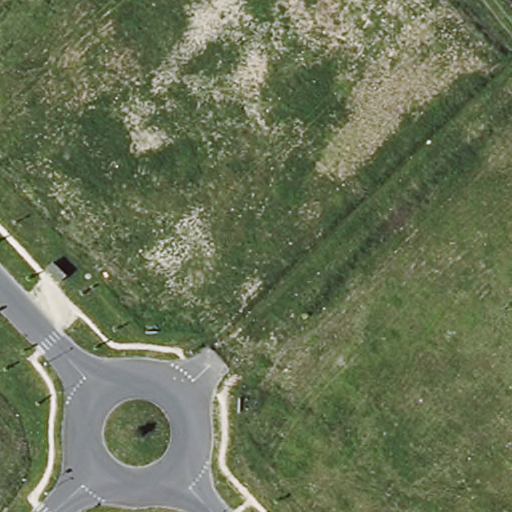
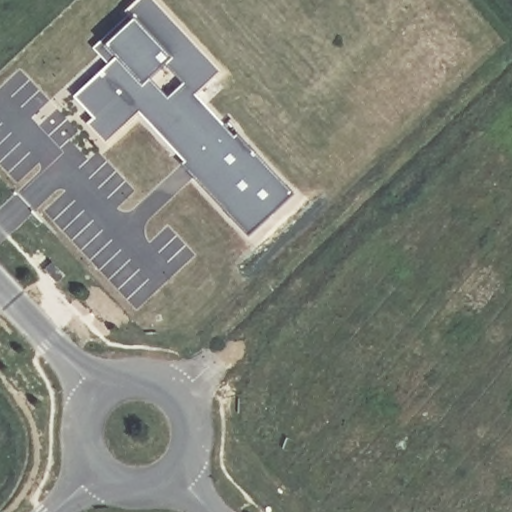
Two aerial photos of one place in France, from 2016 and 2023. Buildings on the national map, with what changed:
new [(74,97),(108,64),(94,48),(130,15),(128,12),(141,0),(155,0),(223,73),(199,96),(235,135),(240,134),(297,195),(250,239),(140,117),(107,145),(88,125),(95,119),(74,97)]
new [(46,256),(58,270),(50,277),(38,263),(46,256)]

